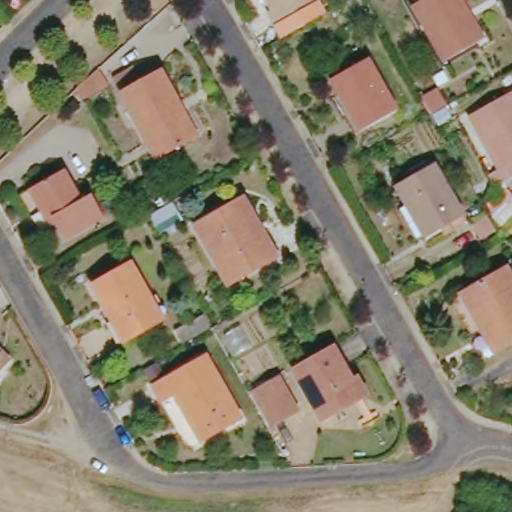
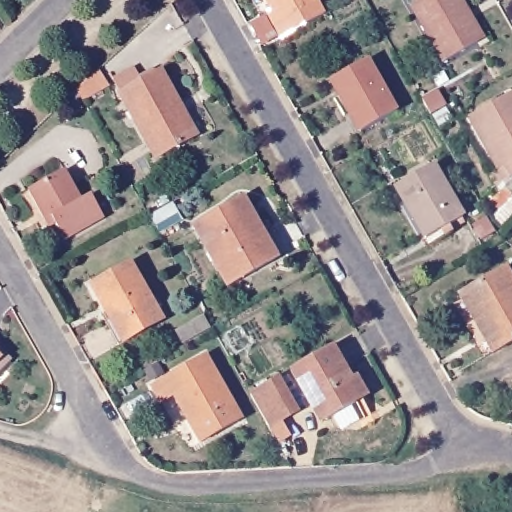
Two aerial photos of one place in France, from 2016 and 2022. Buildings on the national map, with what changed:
unchanged [(270,11),(263,0),(310,0),(313,6),(273,29),(265,15),(270,11)]
unchanged [(362,0),(369,0),(364,3),(362,0)]
unchanged [(435,65),(417,38),(402,12),(410,6),(407,0),(454,0),(461,11),(479,39),(470,46),(435,65)]
unchanged [(392,114),(355,135),(325,82),(362,62),(392,114)]
unchanged [(108,103),(87,119),(78,105),(99,85),(108,103)]
unchanged [(177,121),(173,124),(189,156),(157,172),(122,110),(114,96),(131,86),(139,99),(159,87),(177,121)]
unchanged [(490,176),(499,171),(470,120),(512,93),(512,94),(512,177),(510,179),(512,182),(497,190),(490,176)]
unchanged [(440,137),(434,126),(425,110),(442,101),(450,116),(447,118),(454,129),(440,137)]
unchanged [(457,218),(420,241),(391,186),(425,164),(457,218)]
unchanged [(26,217),(16,196),(64,172),(79,201),(92,195),(104,221),(53,246),(45,231),(35,234),(26,217)]
unchanged [(222,285),(188,224),(222,208),(236,200),(254,232),(269,260),(222,285)]
unchanged [(507,215),(512,223),(512,227),(503,238),(493,222),(507,215)]
unchanged [(108,324),(102,325),(84,289),(121,270),(152,327),(119,344),(108,324)]
unchanged [(512,343),(487,356),(455,298),(500,274),(512,296),(512,343)]
unchanged [(360,401),(353,406),(320,424),(291,371),(327,350),(345,384),(350,381),(360,401)]
unchanged [(6,364),(0,368),(0,358),(6,364)]
unchanged [(234,423),(195,443),(171,400),(160,403),(156,404),(148,388),(202,362),(234,423)]
unchanged [(272,381),(290,416),(264,432),(245,397),(272,381)]

